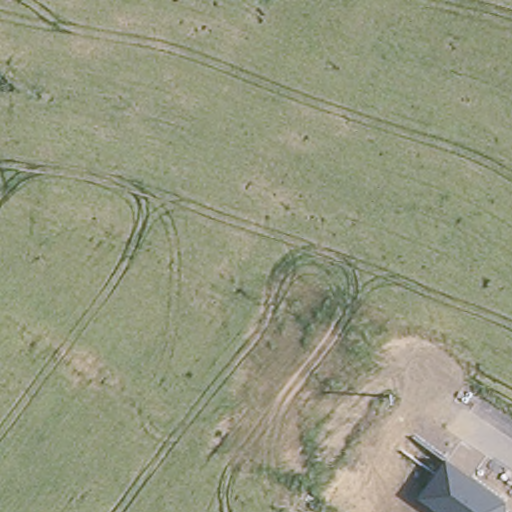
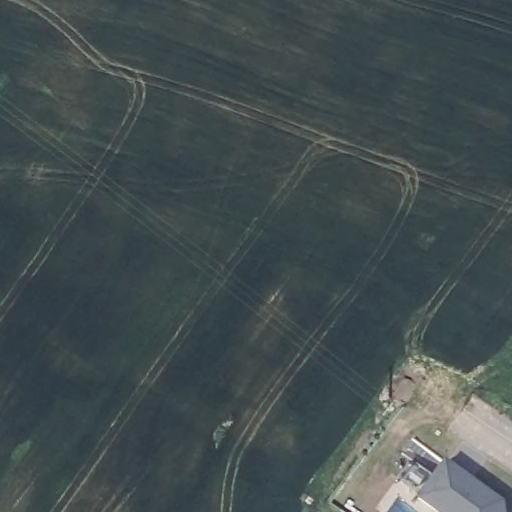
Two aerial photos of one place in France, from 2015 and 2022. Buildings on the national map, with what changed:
unchanged [(449,460),(506,502),(507,512),(508,512),(444,512),(422,496),(449,460)]

